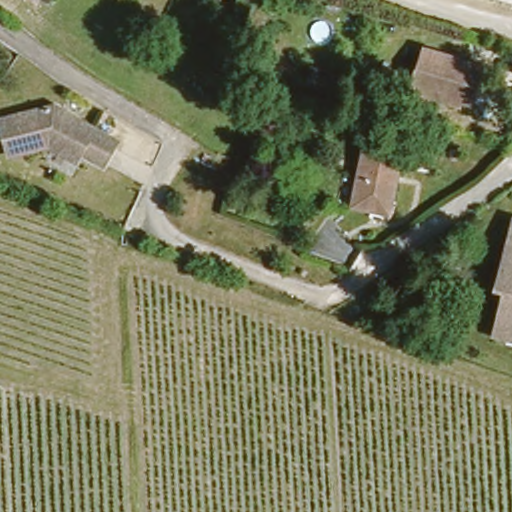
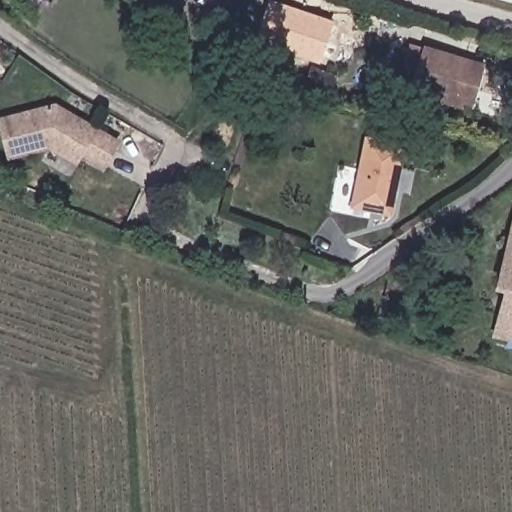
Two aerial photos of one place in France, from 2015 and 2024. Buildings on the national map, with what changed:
unchanged [(36,0),(47,0),(43,5),(36,0)]
new [(334,22),(320,62),(258,40),(271,0),(334,22)]
unchanged [(455,101),(406,86),(419,44),(479,62),(474,79),(466,104),(455,101)]
unchanged [(101,126),(91,152),(67,144),(63,153),(34,142),(2,160),(0,157),(0,118),(33,101),(101,126)]
unchanged [(399,149),(386,218),(349,211),(362,142),(399,149)]
unchanged [(512,215),(512,241),(499,237),(505,213),(512,215)]
unchanged [(497,287),(487,285),(499,237),(512,241),(512,337),(485,330),(497,287)]

